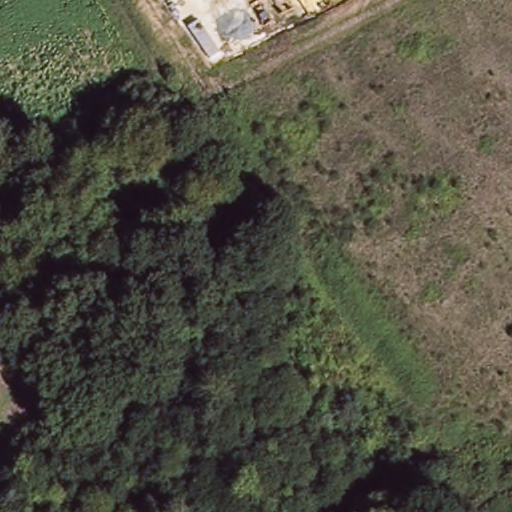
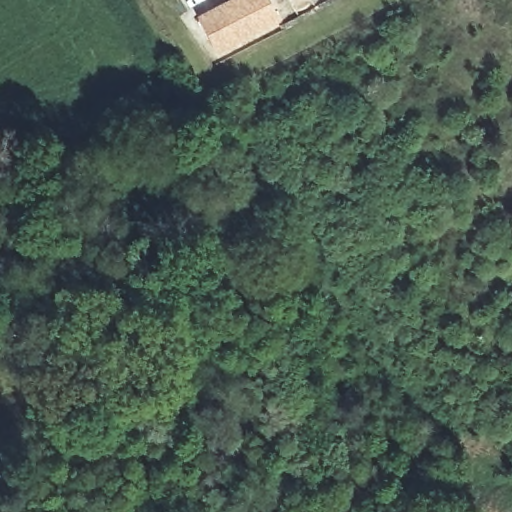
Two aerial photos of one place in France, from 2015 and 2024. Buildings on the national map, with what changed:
new [(233,0),(267,0),(279,20),(214,53),(196,19),(233,0)]

